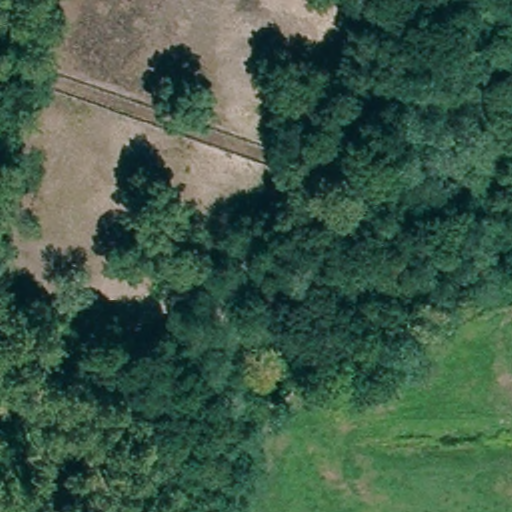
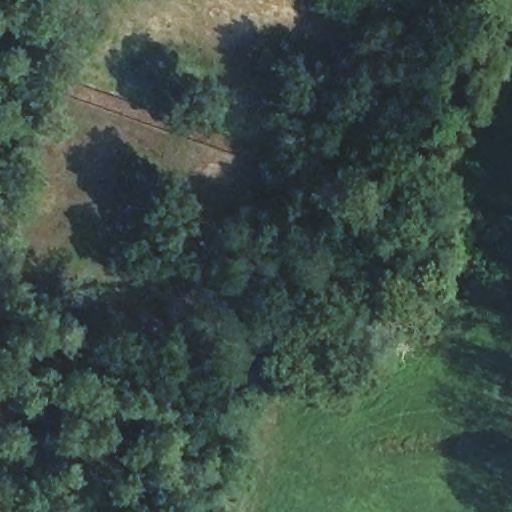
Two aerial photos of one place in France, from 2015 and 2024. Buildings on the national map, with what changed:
unchanged [(9,298),(0,297),(0,259),(17,263),(11,290),(9,298)]

